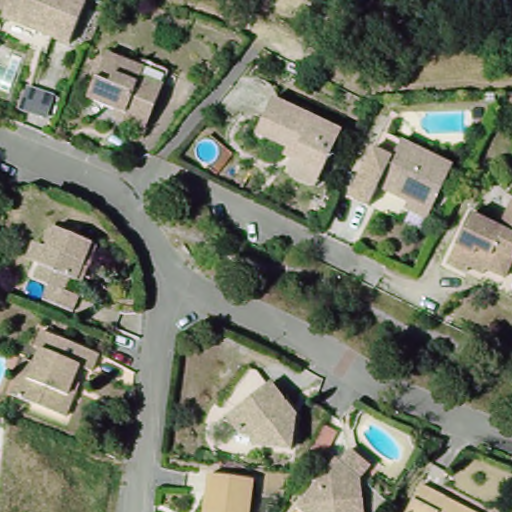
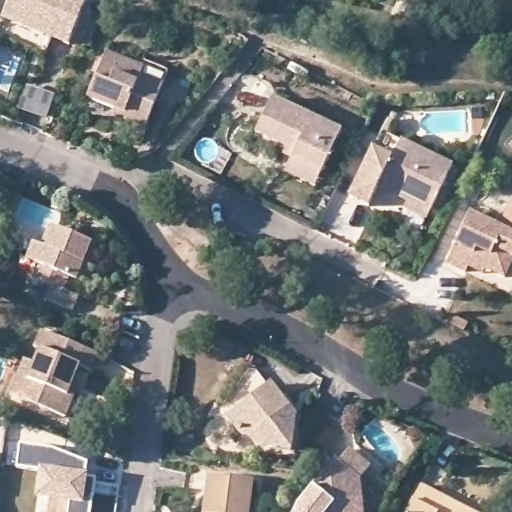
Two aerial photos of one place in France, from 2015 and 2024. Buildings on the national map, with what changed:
unchanged [(68,44),(3,17),(9,0),(85,0),(68,44)]
unchanged [(153,61),(173,69),(150,127),(129,117),(130,112),(93,97),(112,52),(149,67),(153,61)]
new [(25,86),(55,98),(45,120),(16,108),(25,86)]
unchanged [(284,171),(290,160),(294,152),(257,132),(273,98),(342,131),(321,175),(315,186),(284,171)]
unchanged [(404,209),(407,202),(379,188),(370,207),(350,198),(374,150),(393,159),(403,140),(453,164),(430,213),(426,220),(404,209)]
unchanged [(512,198),(512,234),(497,227),(512,198)]
unchanged [(473,268),(470,273),(450,262),(474,216),(497,227),(512,234),(512,268),(508,277),(490,267),(485,273),(473,268)]
unchanged [(70,232),(88,240),(92,242),(76,281),(71,277),(65,290),(78,295),(71,310),(42,298),(48,286),(33,278),(38,266),(34,263),(29,260),(28,254),(29,250),(31,247),(36,246),(42,247),(46,248),(54,227),(62,229),(70,232)]
unchanged [(72,402),(64,421),(11,397),(17,380),(24,362),(35,367),(40,355),(36,352),(43,336),(57,341),(99,358),(91,375),(79,370),(73,385),(80,387),(72,402)]
unchanged [(297,455),(261,451),(256,442),(248,441),(229,416),(229,405),(254,375),(262,376),(273,389),(277,386),(287,401),(295,412),(301,419),(297,455)]
new [(87,462),(87,477),(90,477),(87,512),(67,512),(68,501),(37,498),(40,469),(18,468),(22,444),(52,447),(87,462)]
unchanged [(336,462),(341,466),(350,453),(370,471),(362,482),(363,496),(364,512),(296,512),(295,512),(336,462)]
unchanged [(253,481),(248,512),(204,512),(209,474),(253,481)]
unchanged [(474,512),(409,512),(422,486),(474,512)]

